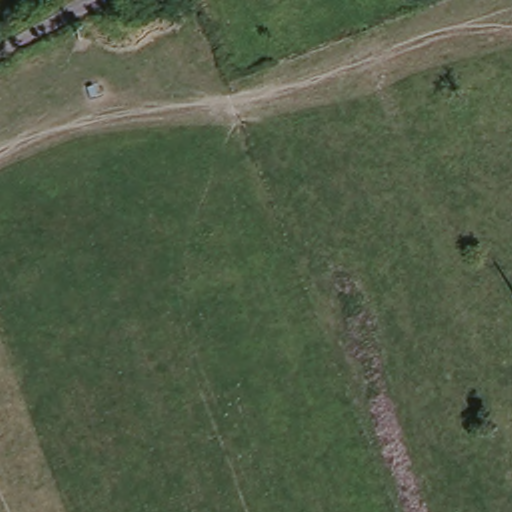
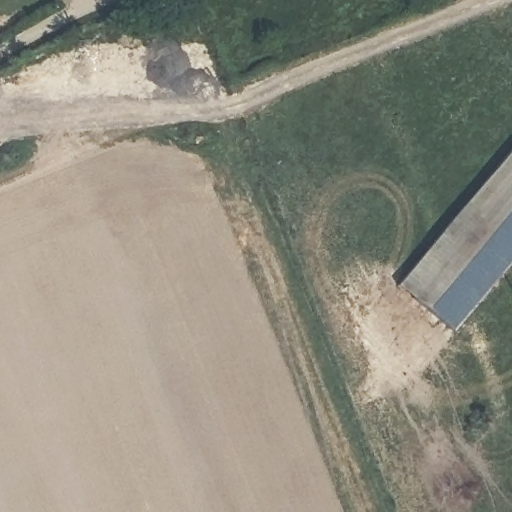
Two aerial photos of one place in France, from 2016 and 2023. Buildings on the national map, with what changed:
new [(512,253),(449,329),(395,284),(512,145),(512,253)]

